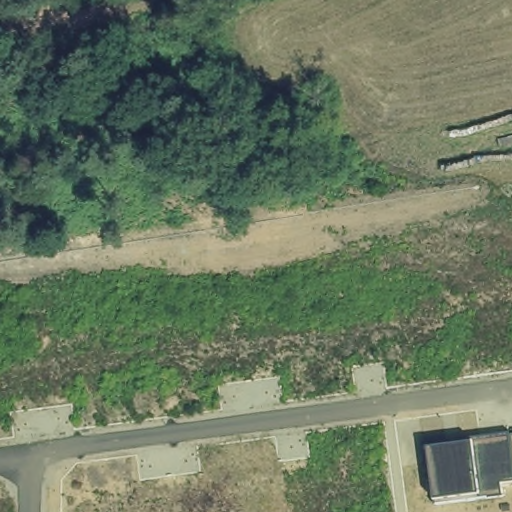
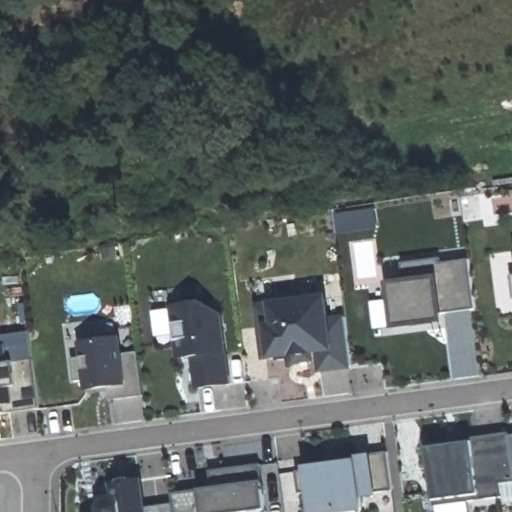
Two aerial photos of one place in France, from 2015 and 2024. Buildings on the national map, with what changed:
new [(443,314),(446,322),(394,330),(388,282),(405,281),(404,263),(441,257),(441,262),(470,260),(476,307),(443,314)]
new [(295,361),(294,356),(296,356),(280,358),(279,355),(266,356),(262,327),(259,306),(273,304),(326,297),(329,318),(346,317),(353,366),(321,370),(318,349),(296,352),(312,350),(313,358),(295,361)]
new [(200,302),(202,317),(220,314),(229,382),(199,387),(194,355),(180,357),(173,306),(200,302)]
new [(3,403),(0,404),(0,344),(2,344),(0,340),(0,335),(30,331),(33,358),(39,407),(4,412),(3,403)]
new [(110,398),(108,387),(84,391),(83,380),(75,380),(73,357),(82,356),(80,342),(121,336),(123,353),(138,352),(144,394),(110,398)]
unchanged [(472,437),(510,432),(510,436),(512,435),(512,482),(502,483),(503,496),(436,505),(435,497),(429,448),(473,442),(472,437)]
new [(355,455),(372,454),(387,452),(391,488),(376,491),(377,495),(362,497),(364,510),(346,512),(310,512),(308,492),(301,493),(298,469),(305,467),(356,458),(355,455)]
new [(105,497),(106,497),(107,482),(142,477),(145,507),(175,503),(173,492),(201,489),(211,487),(209,471),(259,465),(261,481),(264,507),(265,512),(97,512),(97,507),(105,497)]

